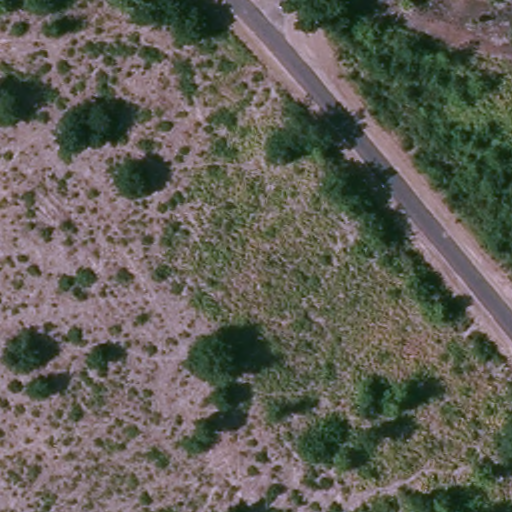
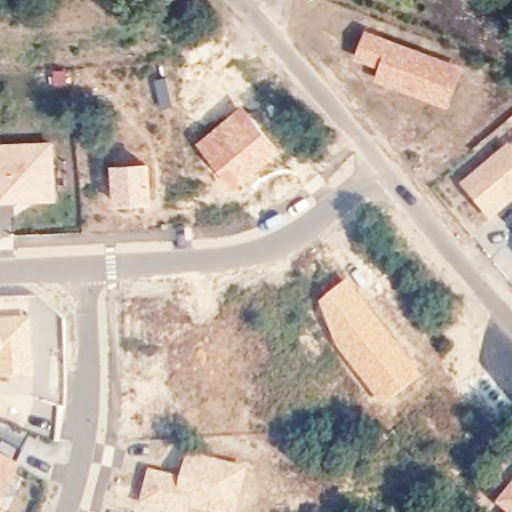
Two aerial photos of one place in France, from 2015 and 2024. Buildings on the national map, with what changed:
new [(465,68),(450,109),(375,82),(381,69),(357,59),(368,31),(465,68)]
new [(242,105),(281,151),(235,191),(196,144),(242,105)]
new [(0,205),(0,143),(56,141),(57,203),(0,205)]
new [(512,146),(512,203),(491,220),(460,185),(510,144),(512,146)]
new [(153,165),(155,205),(116,206),(115,165),(153,165)]
new [(348,280),(421,376),(381,406),(338,348),(315,304),(348,280)]
new [(0,396),(0,320),(31,319),(36,393),(0,396)]
new [(180,477),(189,450),(248,468),(236,512),(200,512),(188,509),(187,512),(160,512),(136,505),(147,468),(180,477)]
new [(3,496),(0,494),(0,455),(19,465),(3,496)]
new [(506,512),(495,503),(512,483),(512,512),(506,512)]

